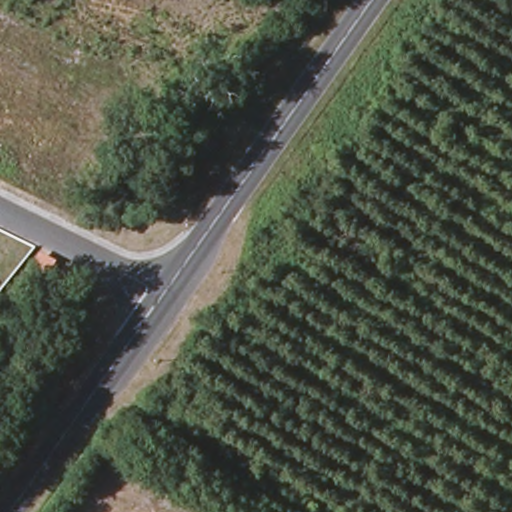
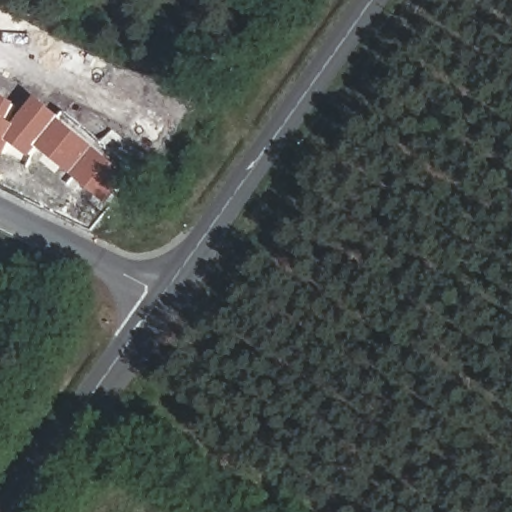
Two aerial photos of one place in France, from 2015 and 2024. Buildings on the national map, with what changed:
new [(18,104),(8,123),(16,126),(37,98),(63,118),(61,120),(135,176),(110,204),(40,150),(32,159),(12,145),(7,157),(0,153),(0,95),(18,104)]

